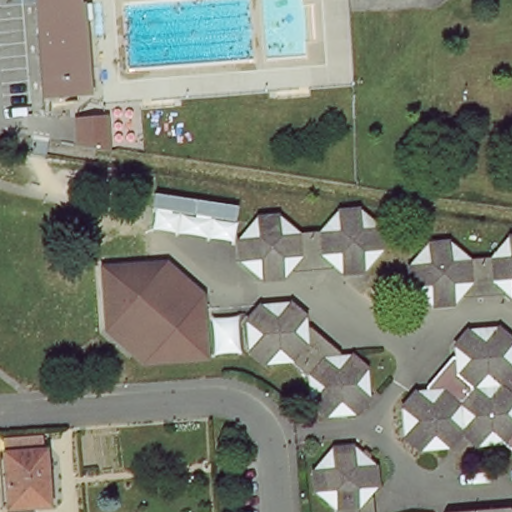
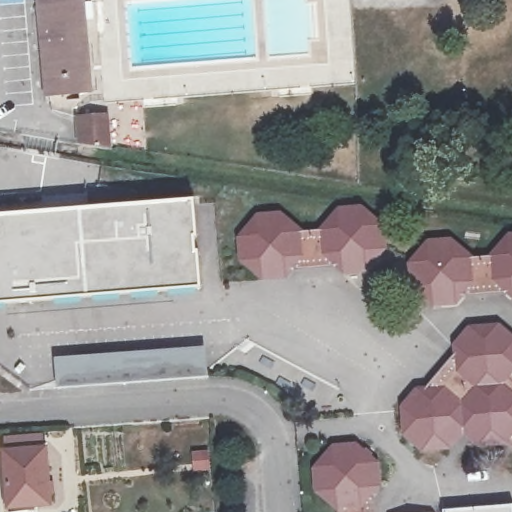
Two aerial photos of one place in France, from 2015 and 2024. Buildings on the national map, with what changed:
unchanged [(80,95),(40,95),(36,0),(74,0),(80,95)]
unchanged [(102,116),(104,143),(79,145),(77,117),(102,116)]
new [(0,296),(0,207),(191,190),(199,277),(143,282),(30,293),(0,296)]
unchanged [(289,267),(261,268),(246,254),(244,230),(259,211),(285,210),(301,225),(328,224),(344,205),(369,203),(387,221),(390,241),(376,260),(343,262),(329,265),(289,267)]
unchanged [(445,297),(435,298),(417,281),(415,260),(436,237),(455,236),(468,251),(498,250),(512,237),(512,293),(461,294),(457,298),(445,297)]
demolished [(158,273),(153,280),(154,306),(148,306),(148,315),(189,311),(194,305),(203,312),(206,350),(207,360),(206,360),(145,365),(107,332),(102,271),(150,267),(158,273)]
demolished [(357,421),(338,423),(314,402),(313,382),(290,363),(268,364),(252,351),(250,329),(269,307),(286,303),(307,320),(308,327),(307,347),(311,350),(330,365),(346,359),(351,358),(374,376),(376,400),(357,421)]
unchanged [(483,441),(467,427),(451,445),(424,445),(411,432),(409,405),(427,383),(432,383),(456,355),(455,351),(472,331),(501,327),(512,336),(512,375),(506,382),(512,388),(512,442),(507,438),(483,441)]
new [(54,355),(198,342),(200,366),(56,378),(54,355)]
unchanged [(10,507),(7,455),(5,440),(46,437),(47,452),(52,504),(10,507)]
unchanged [(372,512),(334,512),(334,510),(313,489),(312,469),(319,460),(330,450),(357,448),(374,463),(375,491),(370,495),(372,512)]
unchanged [(512,508),(512,512),(446,512),(445,511),(512,508)]

